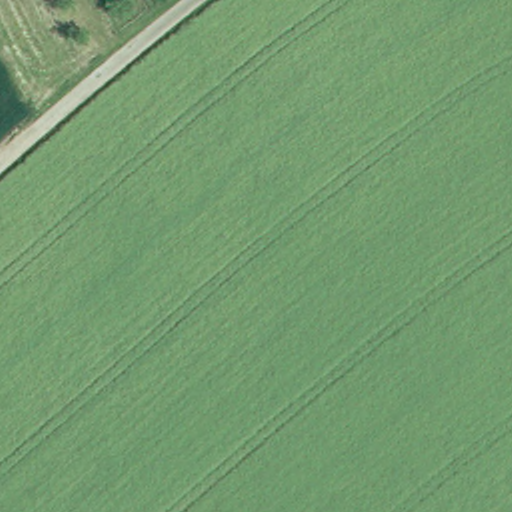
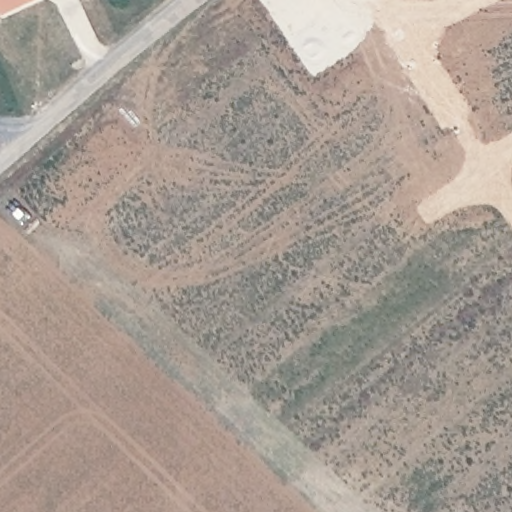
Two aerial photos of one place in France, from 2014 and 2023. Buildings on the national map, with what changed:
new [(0,5),(0,0),(33,0),(4,14),(0,5)]

